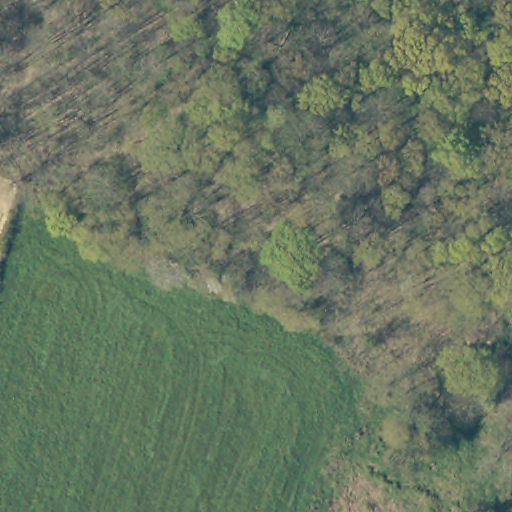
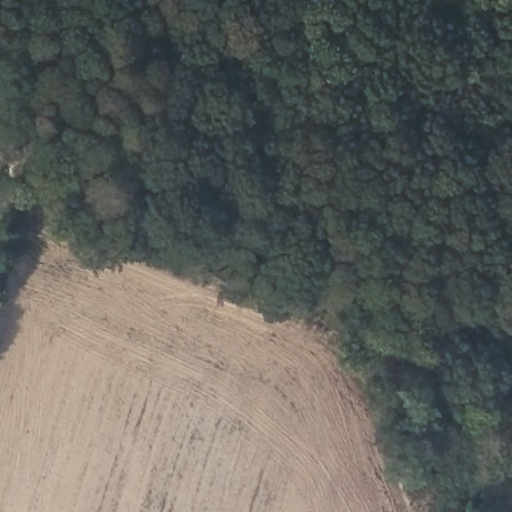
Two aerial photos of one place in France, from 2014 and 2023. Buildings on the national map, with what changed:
unchanged [(510,315),(512,315),(512,334),(511,335),(510,315)]

